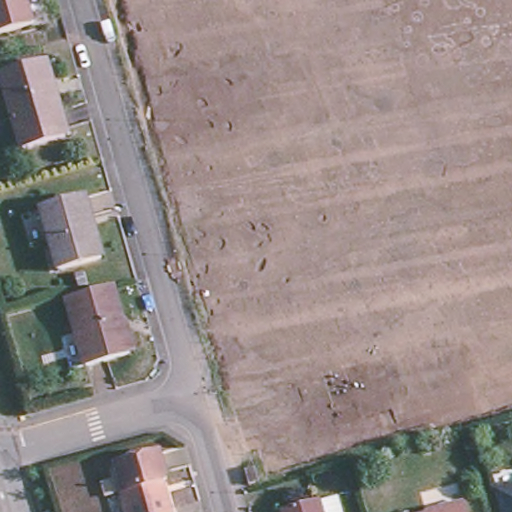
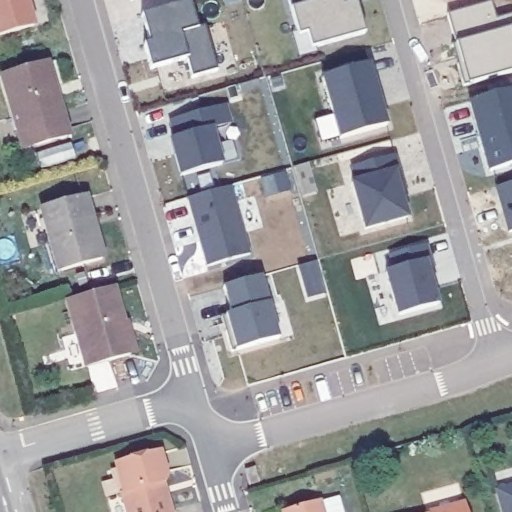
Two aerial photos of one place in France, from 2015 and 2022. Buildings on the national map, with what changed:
unchanged [(0,31),(0,0),(30,0),(36,21),(0,31)]
new [(191,0),(199,26),(206,24),(218,69),(192,76),(187,57),(152,67),(144,42),(150,40),(142,13),(185,0),(191,0)]
new [(353,0),(357,0),(366,31),(317,45),(311,25),(297,29),(289,0),(343,0),(344,3),(353,0)]
new [(494,0),(497,18),(512,13),(512,66),(470,79),(450,12),(492,0),(494,0)]
unchanged [(24,145),(2,73),(42,62),(50,59),(62,100),(72,131),(24,145)]
new [(370,61),(387,124),(341,137),(323,75),(370,61)]
new [(512,87),(512,163),(490,169),(470,99),(512,87)]
new [(231,121),(241,159),(222,164),(182,177),(171,140),(162,124),(226,104),(231,121)]
new [(352,165),(396,153),(404,183),(407,194),(402,195),(409,215),(366,228),(352,182),(357,180),(352,165)]
new [(512,181),(512,229),(509,230),(496,185),(512,181)]
new [(232,184),(252,254),(207,265),(189,196),(232,184)]
unchanged [(88,214),(91,213),(104,255),(59,267),(51,239),(41,205),(82,194),(88,214)]
new [(395,268),(391,254),(427,243),(435,273),(427,275),(430,285),(433,284),(438,304),(399,314),(387,270),(395,268)]
new [(232,312),(225,285),(262,274),(280,337),(232,350),(227,329),(222,314),(227,313),(232,312)]
unchanged [(126,361),(82,373),(62,305),(109,292),(120,330),(123,329),(132,359),(126,361)]
unchanged [(162,481),(164,490),(167,489),(174,512),(128,512),(122,491),(124,489),(116,460),(162,448),(167,471),(165,481),(162,481)]
unchanged [(257,476),(247,478),(244,464),(252,461),(257,476)]
unchanged [(498,488),(512,484),(512,512),(505,512),(498,488)]
unchanged [(324,512),(284,512),(284,509),(321,499),(321,500),(324,512)]
unchanged [(427,512),(465,501),(468,512),(427,512)]

